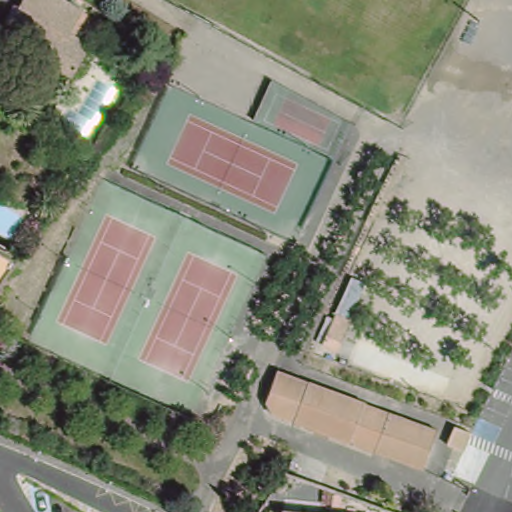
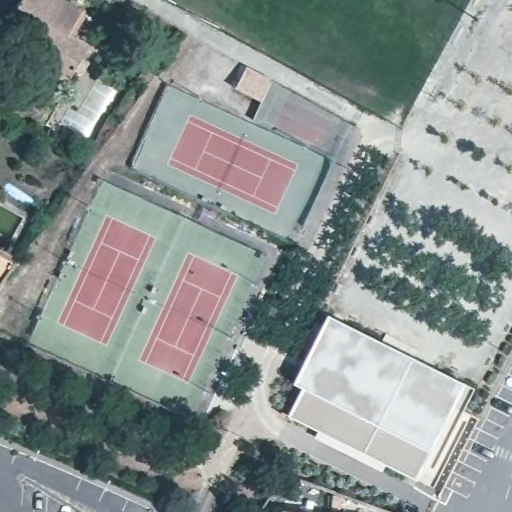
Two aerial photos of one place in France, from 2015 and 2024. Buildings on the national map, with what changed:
unchanged [(90,48),(86,56),(73,80),(18,50),(35,19),(21,11),(28,0),(62,0),(85,13),(71,37),(90,48)]
unchanged [(142,79),(150,67),(158,73),(150,85),(142,79)]
unchanged [(0,293),(0,256),(18,266),(0,293)]
demolished [(358,323),(340,361),(316,348),(331,312),(358,323)]
new [(430,451),(417,480),(290,415),(301,387),(294,384),(328,314),(466,384),(430,451)]
demolished [(310,383),(295,423),(273,415),(267,403),(280,372),(310,383)]
demolished [(310,383),(365,404),(351,443),(295,423),(310,383)]
demolished [(425,469),(351,443),(365,404),(437,432),(425,469)]
demolished [(475,429),(467,450),(450,443),(457,423),(475,429)]
unchanged [(286,512),(286,509),(315,512),(286,512)]

